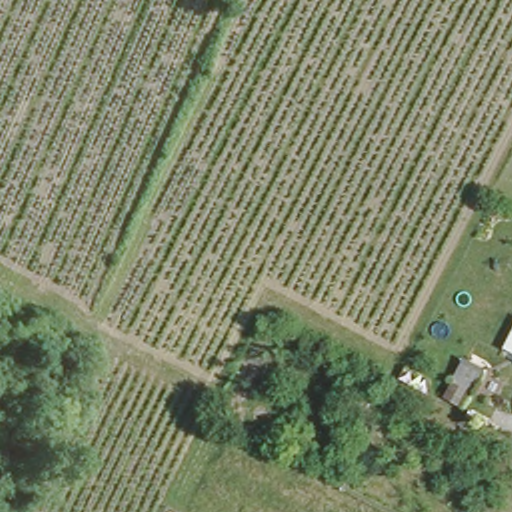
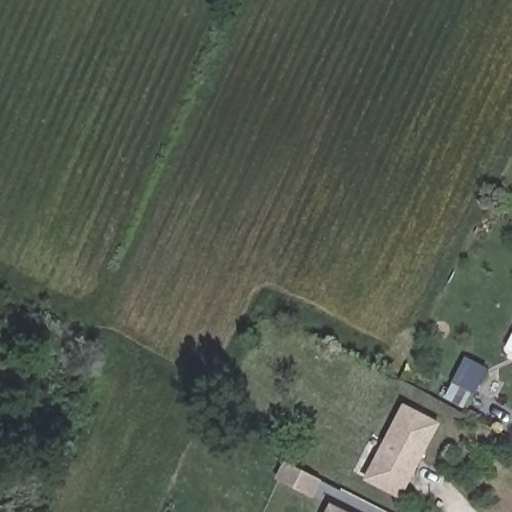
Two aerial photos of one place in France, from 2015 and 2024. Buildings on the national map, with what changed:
unchanged [(512,332),(512,357),(502,352),(512,332)]
unchanged [(452,393),(461,368),(482,376),(474,401),(452,393)]
new [(406,404),(440,423),(401,496),(366,477),(406,404)]
new [(287,463),(318,478),(310,496),(279,480),(287,463)]
new [(347,512),(326,512),(330,503),(347,512)]

